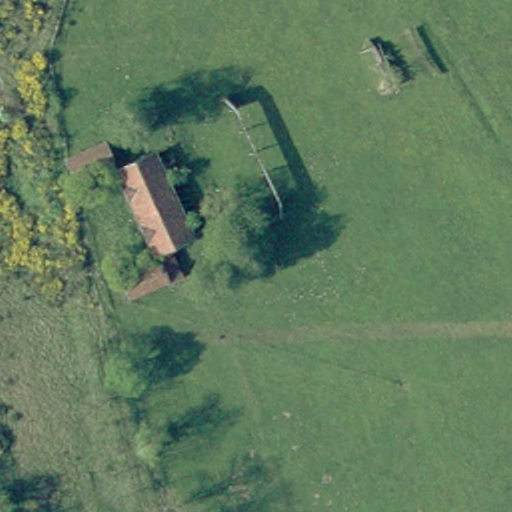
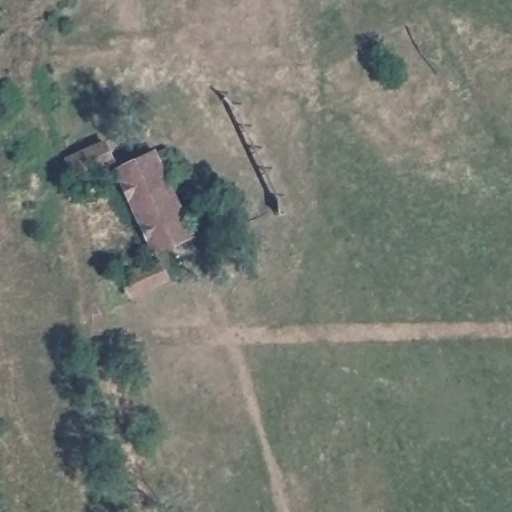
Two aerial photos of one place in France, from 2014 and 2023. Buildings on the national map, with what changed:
unchanged [(112,157),(74,174),(65,155),(105,139),(112,157)]
unchanged [(192,232),(155,249),(117,170),(156,152),(192,232)]
unchanged [(169,277),(130,295),(122,276),(160,258),(169,277)]

